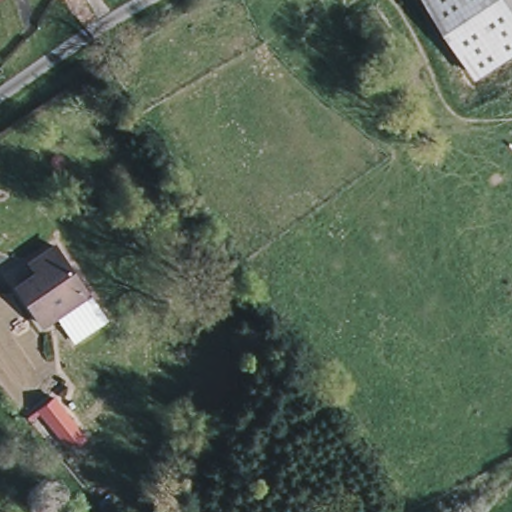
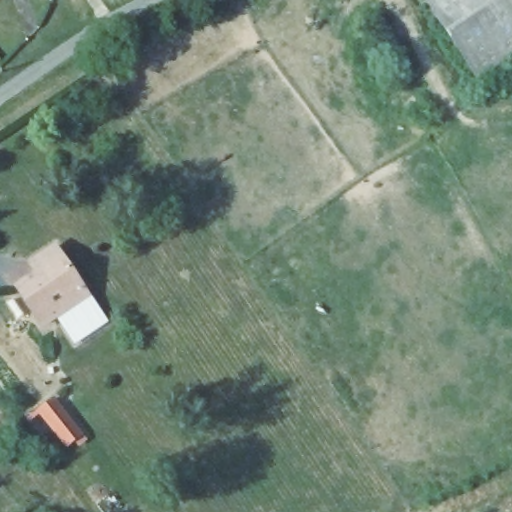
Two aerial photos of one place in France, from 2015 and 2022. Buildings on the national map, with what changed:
unchanged [(421,0),(512,0),(512,56),(473,81),(421,0)]
unchanged [(31,312),(6,274),(27,260),(21,251),(46,235),(76,282),(45,303),(31,312)]
unchanged [(76,282),(95,309),(65,330),(45,303),(76,282)]
unchanged [(55,398),(83,434),(67,446),(39,411),(55,398)]

